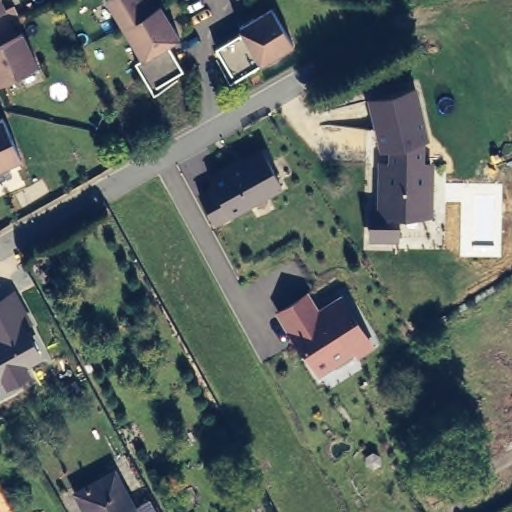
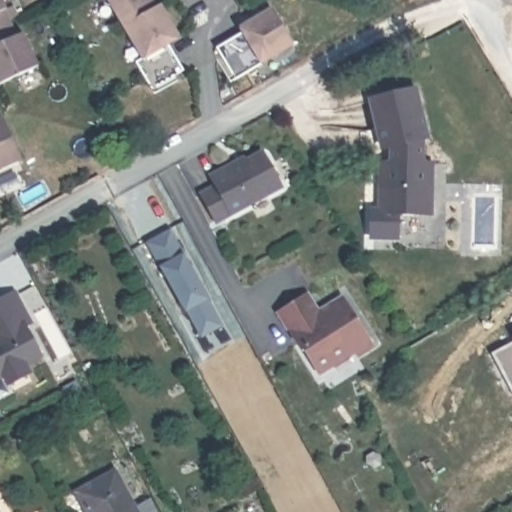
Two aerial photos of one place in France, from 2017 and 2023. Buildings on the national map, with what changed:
unchanged [(0,84),(0,82),(0,0),(6,0),(10,9),(8,10),(19,34),(25,31),(40,64),(0,84)]
unchanged [(172,48),(186,74),(154,92),(140,67),(145,63),(109,0),(154,0),(160,9),(164,9),(182,41),(172,48)]
unchanged [(293,47),(234,82),(215,50),(241,35),(242,29),(272,11),(293,47)]
unchanged [(430,137),(425,138),(425,160),(435,161),(430,215),(403,214),(400,244),(369,242),(369,209),(376,210),(378,163),(387,162),(387,147),(377,148),(365,100),(416,88),(430,137)]
unchanged [(20,162),(0,172),(0,121),(1,121),(20,162)]
unchanged [(215,222),(196,191),(209,184),(206,177),(240,155),(243,158),(257,150),(282,187),(215,222)]
unchanged [(30,375),(5,388),(0,378),(0,297),(15,290),(32,326),(27,328),(42,356),(26,366),(30,375)]
unchanged [(319,310),(340,296),(375,350),(355,362),(352,355),(317,374),(275,314),(304,291),(319,310)]
new [(489,354),(512,342),(512,397),(489,354)]
unchanged [(109,475),(116,470),(137,510),(138,512),(86,512),(75,493),(109,475)]
unchanged [(232,492),(252,482),(252,483),(257,492),(238,502),(233,493),(232,492)]

